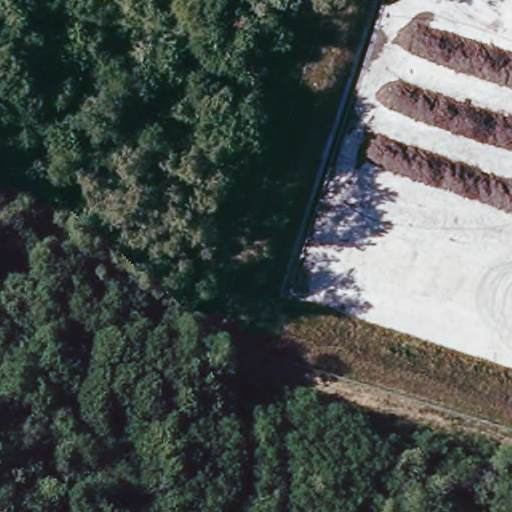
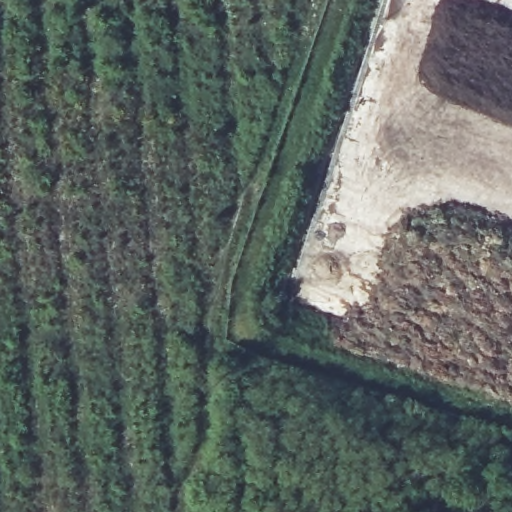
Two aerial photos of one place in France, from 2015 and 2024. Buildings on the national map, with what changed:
[]

